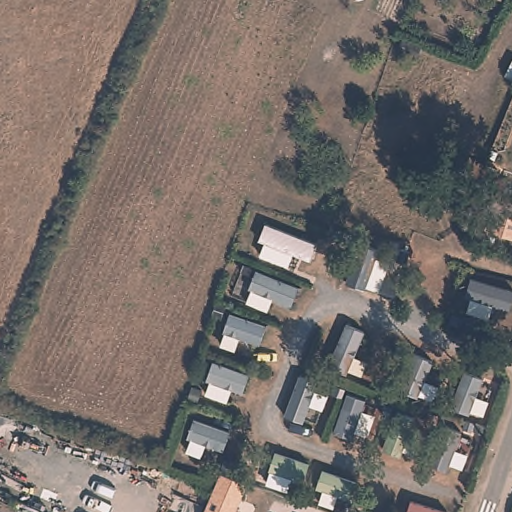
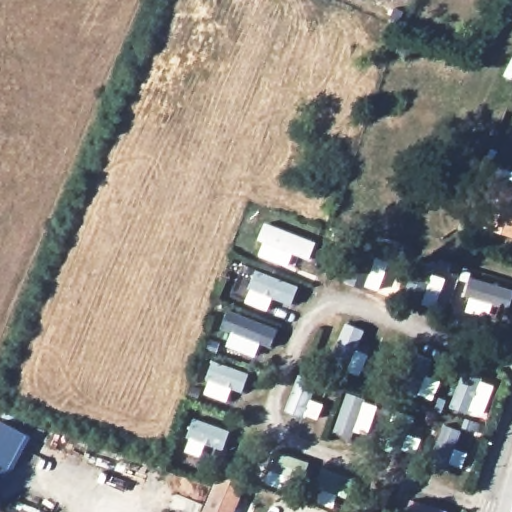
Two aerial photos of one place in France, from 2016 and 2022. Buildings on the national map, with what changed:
unchanged [(493,220),(502,195),(512,198),(512,226),(493,220)]
new [(0,476),(0,422),(21,433),(0,476)]
unchanged [(219,473),(245,482),(234,512),(203,512),(219,473)]

